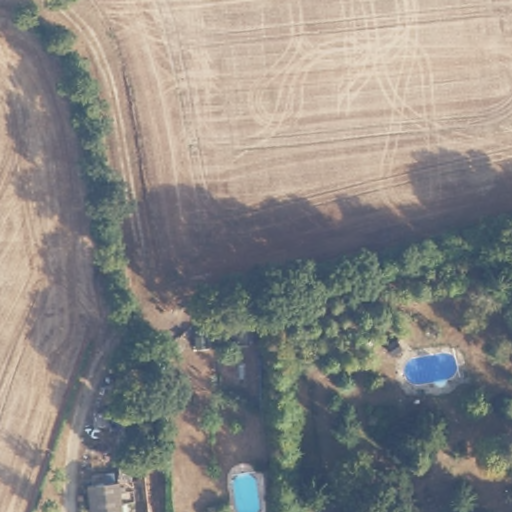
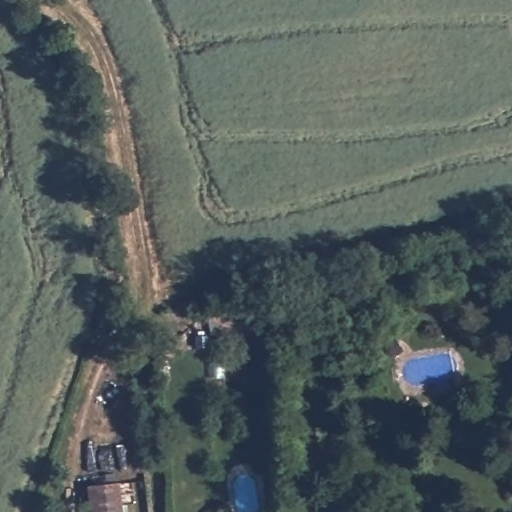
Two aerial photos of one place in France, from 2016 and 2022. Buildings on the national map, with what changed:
unchanged [(95,497),(123,495),(125,512),(97,512),(95,497)]

